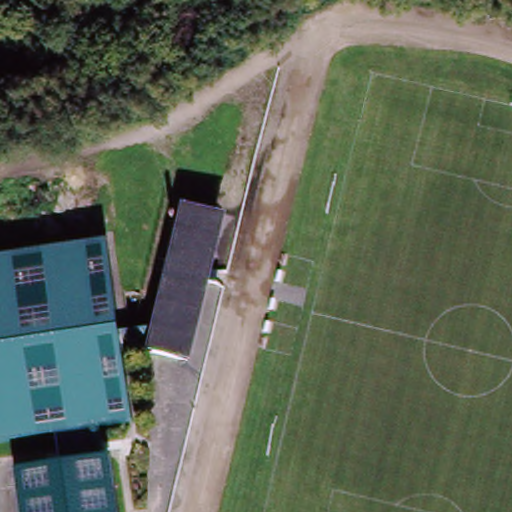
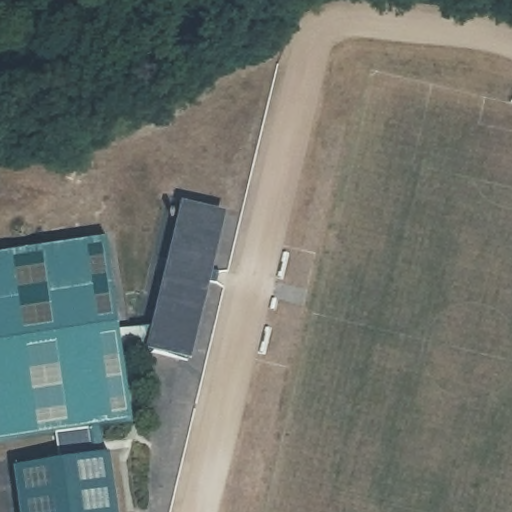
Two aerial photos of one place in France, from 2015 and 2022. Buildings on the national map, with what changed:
unchanged [(125,331),(154,336),(182,210),(226,220),(191,368),(149,358),(128,353),(125,331)]
unchanged [(107,232),(136,422),(0,442),(0,248),(107,232)]
unchanged [(106,455),(115,512),(20,512),(13,470),(106,455)]

